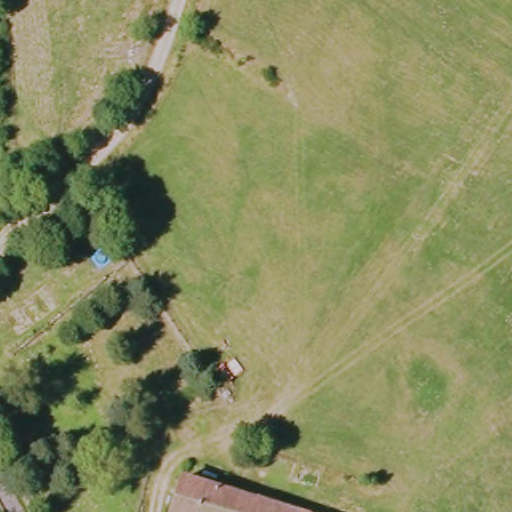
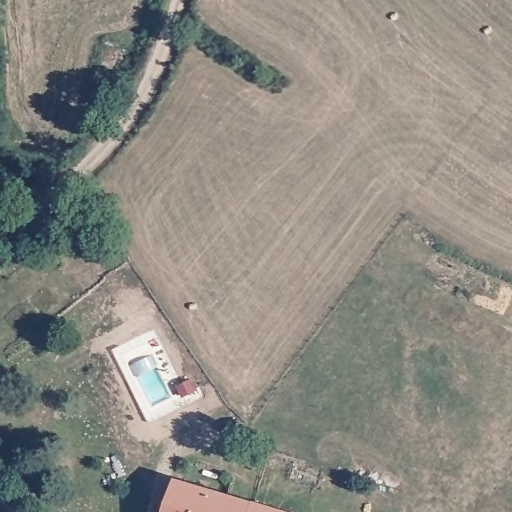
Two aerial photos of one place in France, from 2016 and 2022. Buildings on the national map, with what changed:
unchanged [(248,512),(165,512),(176,478),(252,500),(248,512)]
unchanged [(289,512),(248,512),(252,500),(289,512)]

